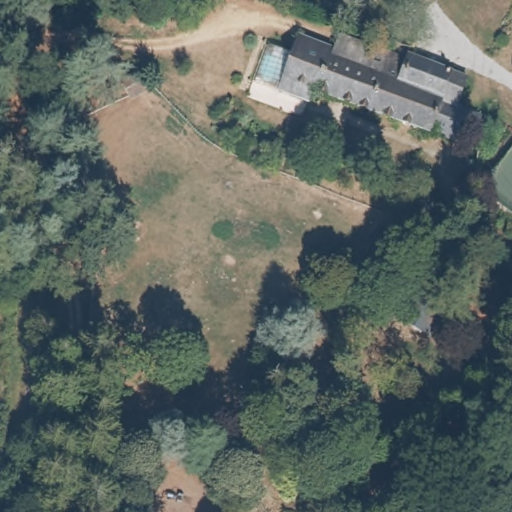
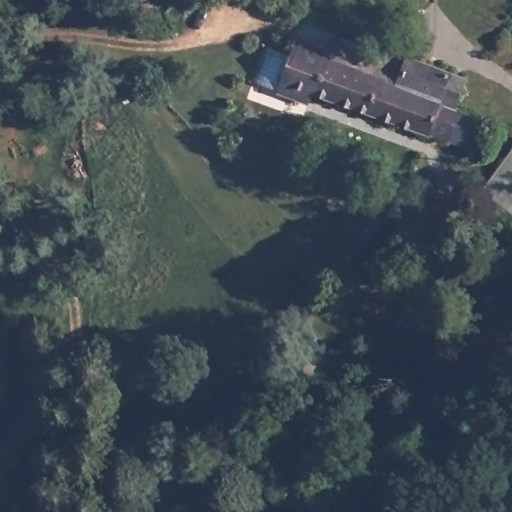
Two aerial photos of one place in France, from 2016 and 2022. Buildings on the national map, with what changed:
unchanged [(460,110),(453,129),(432,121),(427,134),(282,78),(298,37),(333,50),(338,38),(405,63),(398,84),(454,107),(460,110)]
unchanged [(454,107),(398,84),(405,63),(407,57),(465,79),(454,107)]
unchanged [(391,270),(399,275),(394,283),(380,280),(365,272),(413,192),(430,202),(391,270)]

